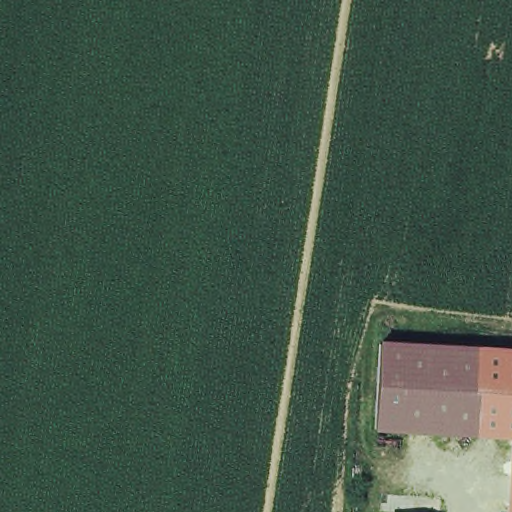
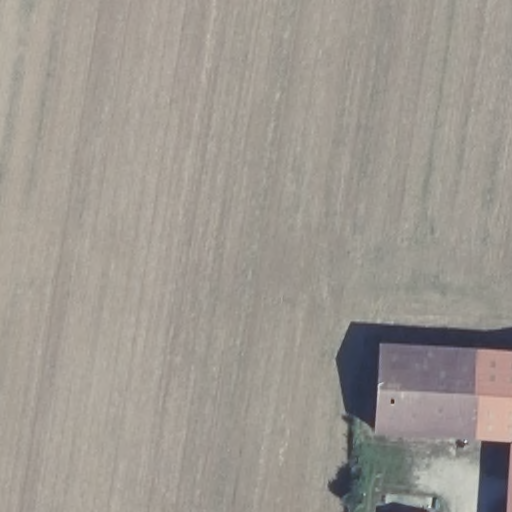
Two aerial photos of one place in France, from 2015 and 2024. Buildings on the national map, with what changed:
unchanged [(377,343),(512,351),(512,440),(370,430),(377,343)]
unchanged [(512,494),(512,512),(510,512),(512,494)]

